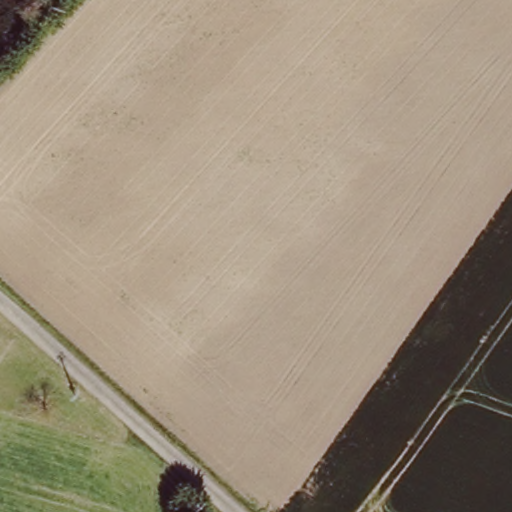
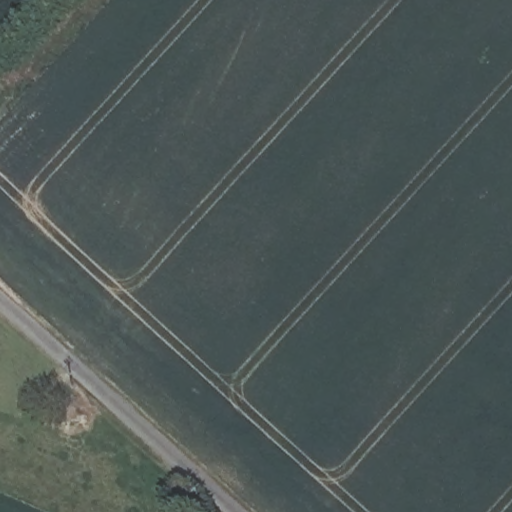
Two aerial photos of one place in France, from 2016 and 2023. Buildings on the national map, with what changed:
[]

